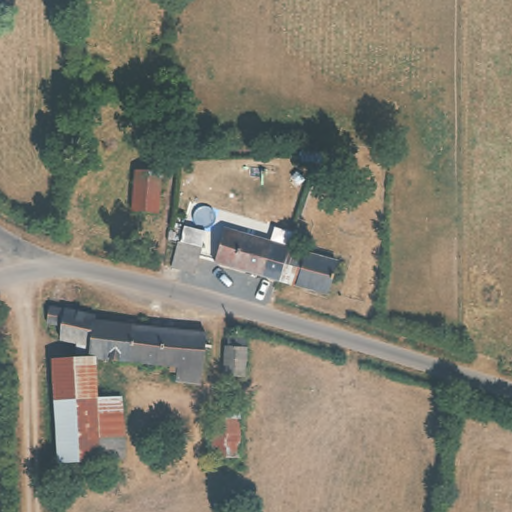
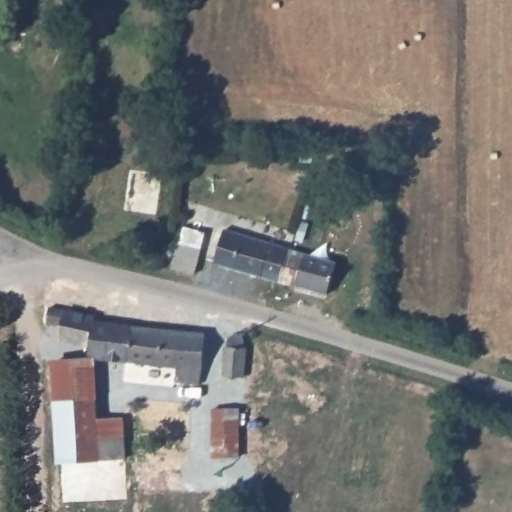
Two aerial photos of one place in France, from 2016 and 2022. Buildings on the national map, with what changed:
unchanged [(139,165),(165,169),(159,215),(129,210),(139,165)]
unchanged [(193,275),(170,268),(178,243),(179,244),(184,227),(205,233),(193,275)]
unchanged [(259,239),(275,241),(278,242),(269,278),(222,267),(230,232),(259,239)]
unchanged [(325,255),(317,289),(269,278),(278,242),(284,243),(325,255)]
unchanged [(204,329),(199,382),(177,380),(178,362),(78,351),(78,340),(61,336),(62,324),(49,320),(53,302),(91,312),(92,316),(204,329)]
unchanged [(235,331),(238,333),(240,338),(240,345),(248,346),(246,365),(245,377),(224,375),(224,345),(228,345),(228,338),(229,333),(232,331),(235,331)]
unchanged [(96,361),(99,392),(128,391),(131,460),(56,463),(51,364),(96,361)]
unchanged [(243,407),(244,462),(209,460),(212,407),(243,407)]

